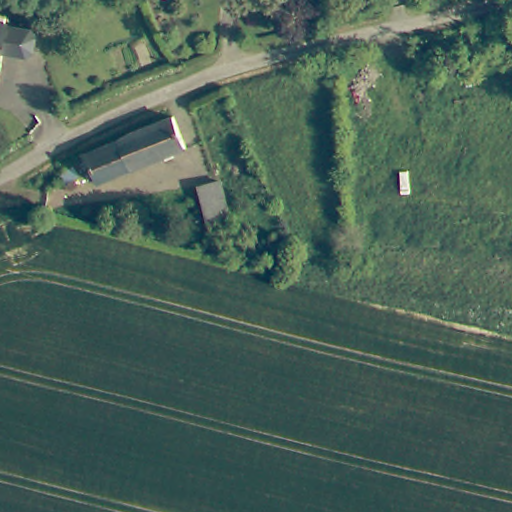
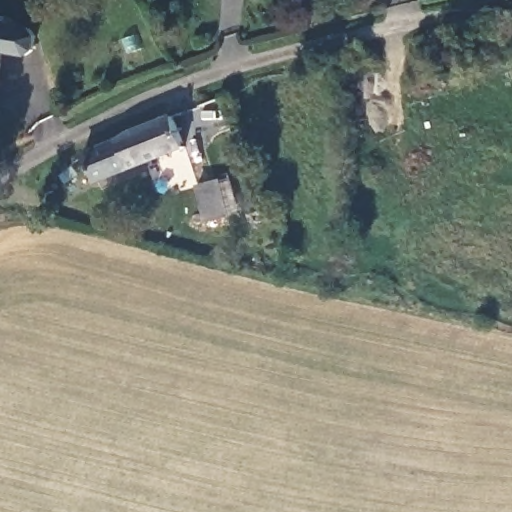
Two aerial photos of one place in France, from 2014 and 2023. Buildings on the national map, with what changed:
unchanged [(13,16),(36,20),(41,27),(39,41),(32,46),(9,42),(3,76),(0,76),(0,12),(13,14),(13,16)]
unchanged [(192,144),(184,148),(103,181),(88,150),(106,143),(130,126),(177,111),(192,144)]
unchanged [(238,218),(217,218),(216,181),(235,181),(238,218)]

